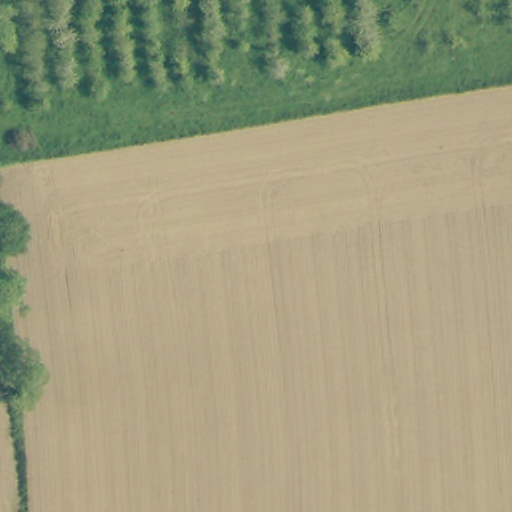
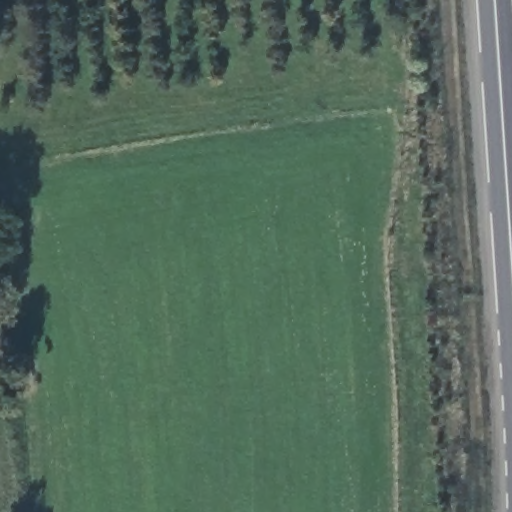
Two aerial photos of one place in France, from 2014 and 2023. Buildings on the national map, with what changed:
[]

